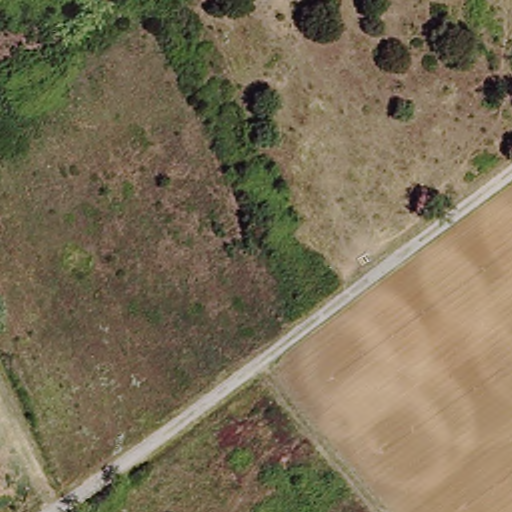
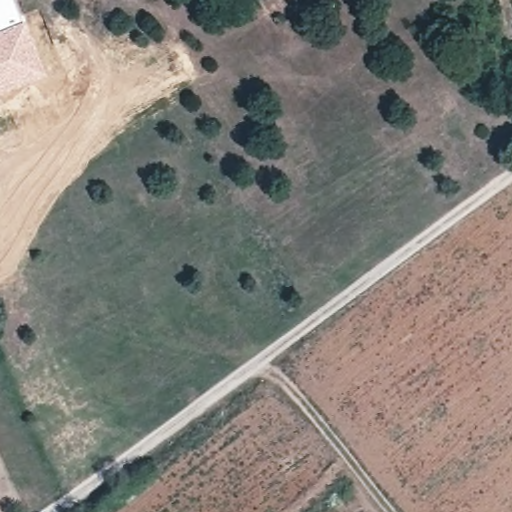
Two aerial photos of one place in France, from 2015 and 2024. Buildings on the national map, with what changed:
new [(0,29),(0,0),(15,0),(24,20),(0,29)]
new [(24,20),(48,75),(20,87),(0,95),(0,29),(24,20)]

